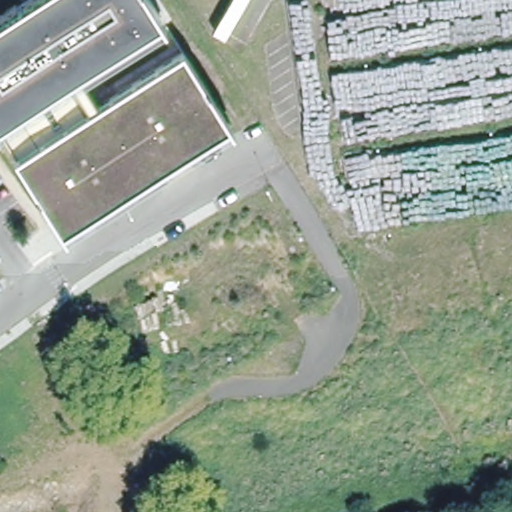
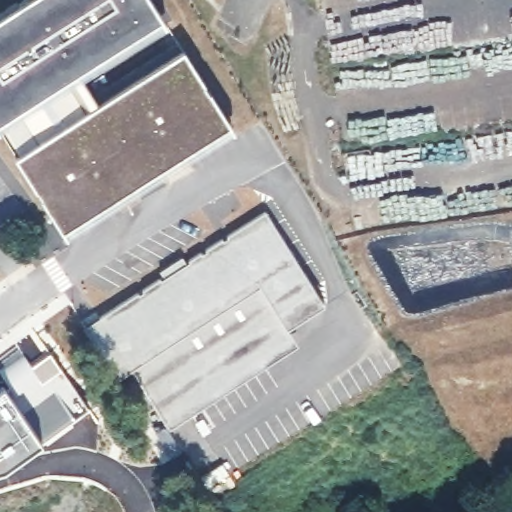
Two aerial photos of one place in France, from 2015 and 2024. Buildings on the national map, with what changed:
unchanged [(153,0),(233,126),(64,233),(0,132),(0,16),(25,0),(153,0)]
demolished [(346,178),(344,152),(370,147),(373,176),(346,178)]
new [(162,277),(159,272),(181,258),(184,263),(264,212),(320,300),(154,406),(127,363),(122,366),(112,373),(82,328),(94,321),(162,277)]
new [(320,300),(324,306),(254,351),(263,363),(166,425),(154,406),(320,300)]
new [(31,362),(50,349),(90,407),(43,442),(1,381),(0,382),(0,358),(17,343),(31,362)]
new [(43,442),(1,468),(0,469),(0,382),(1,381),(43,442)]

